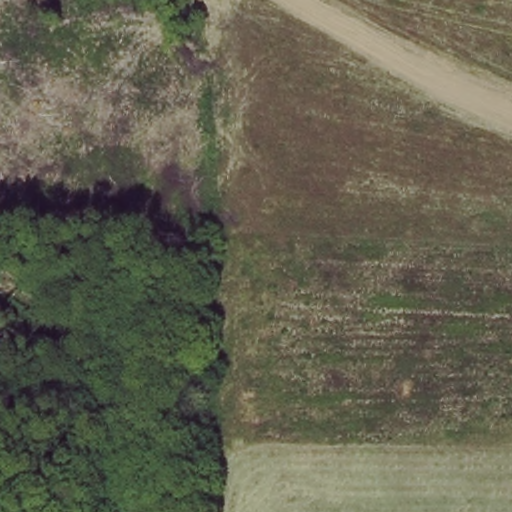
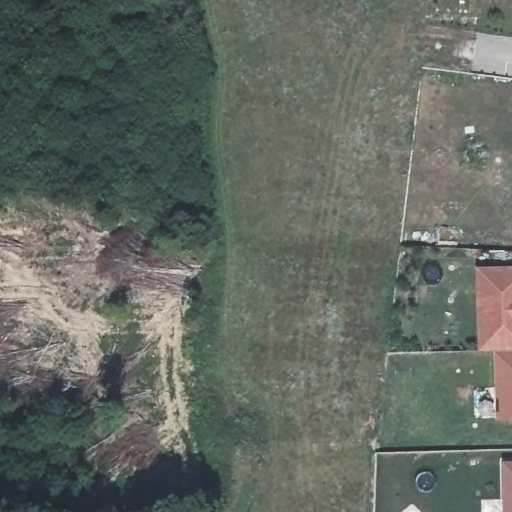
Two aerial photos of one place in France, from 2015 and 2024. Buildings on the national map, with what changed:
new [(480,335),(480,269),(512,269),(512,351),(493,351),(480,351),(480,335)]
new [(512,353),(512,368),(498,369),(498,354),(512,353)]
new [(499,418),(498,369),(512,368),(512,418),(499,418)]
new [(512,465),(512,512),(507,512),(505,465),(512,465)]

